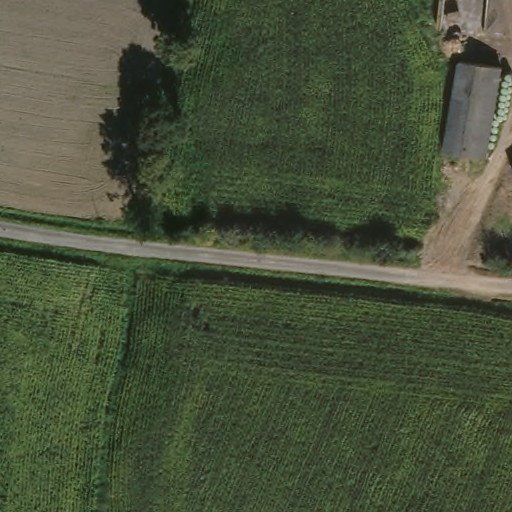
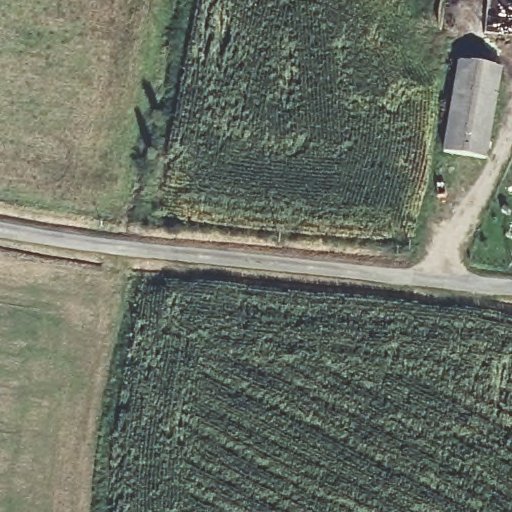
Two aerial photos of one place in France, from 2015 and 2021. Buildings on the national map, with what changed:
unchanged [(481,160),(439,155),(450,64),(495,71),(481,160)]
unchanged [(510,172),(512,171),(512,179),(509,172),(510,172)]

